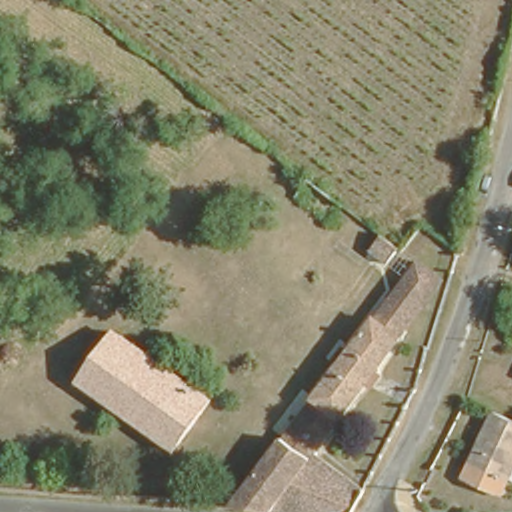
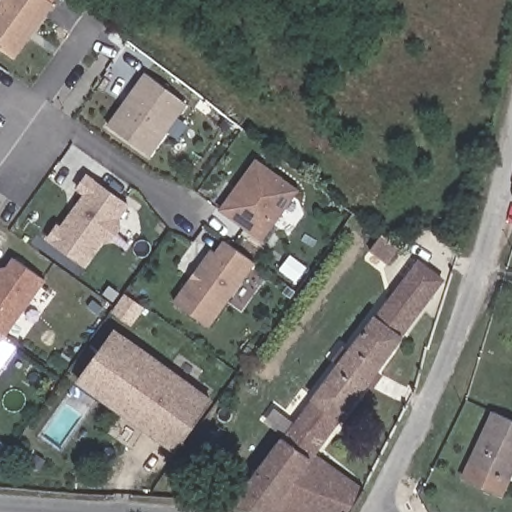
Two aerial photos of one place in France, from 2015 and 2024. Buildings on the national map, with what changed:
new [(0,49),(0,0),(48,0),(54,4),(14,60),(0,49)]
new [(149,157),(106,125),(144,72),(187,104),(149,157)]
new [(255,158),(299,191),(261,242),(219,210),(255,158)]
new [(86,174),(129,204),(119,217),(121,226),(109,242),(102,243),(84,267),(45,239),(56,224),(59,226),(81,195),(75,189),(86,174)]
demolished [(337,216),(318,201),(333,181),(353,195),(337,216)]
unchanged [(408,236),(398,249),(387,240),(396,227),(408,236)]
new [(224,240),(256,263),(209,327),(173,300),(210,248),(215,252),(224,240)]
unchanged [(376,370),(318,452),(370,486),(358,512),(330,512),(232,499),(425,244),(451,263),(376,370)]
new [(13,256),(46,281),(0,344),(0,267),(5,267),(13,256)]
unchanged [(83,378),(120,329),(214,394),(178,447),(83,378)]
unchanged [(511,412),(512,412),(512,455),(498,486),(468,473),(497,405),(511,412)]

